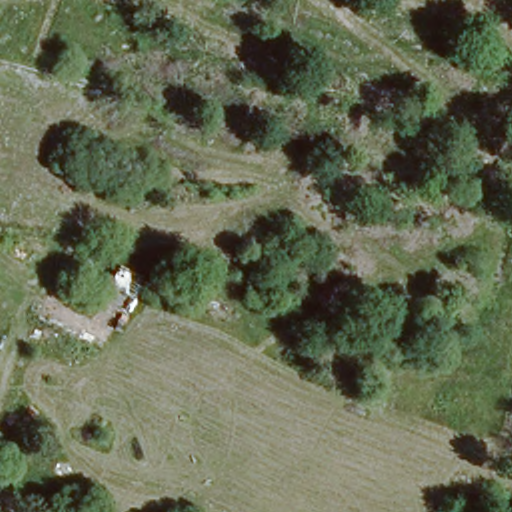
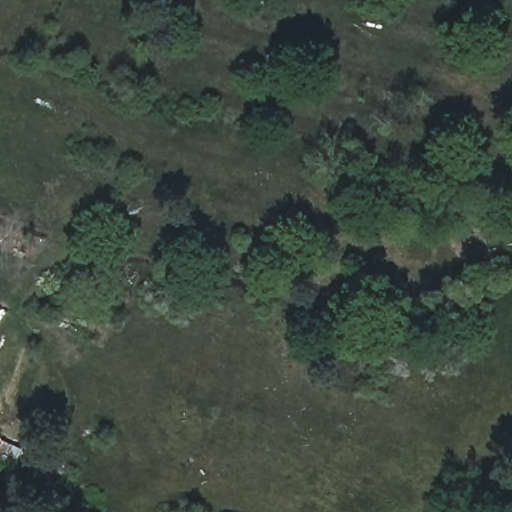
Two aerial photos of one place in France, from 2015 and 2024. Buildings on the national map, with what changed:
[]

